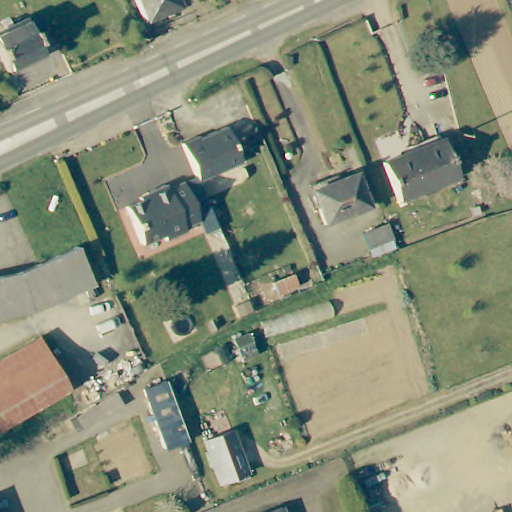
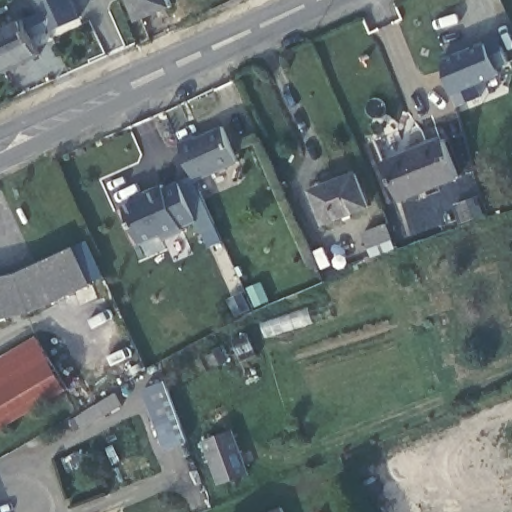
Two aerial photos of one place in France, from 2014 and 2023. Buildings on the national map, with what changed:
unchanged [(173,6),(139,20),(130,0),(171,0),(173,6)]
unchanged [(8,76),(0,60),(0,36),(28,24),(45,60),(8,76)]
new [(510,64),(497,69),(499,77),(477,86),(481,96),(458,107),(453,97),(443,60),(488,42),(499,36),(510,64)]
unchanged [(192,135),(193,138),(220,126),(236,161),(194,180),(176,143),(192,135)]
unchanged [(399,203),(381,164),(443,136),(460,175),(399,203)]
unchanged [(327,223),(318,204),(325,201),(321,187),(356,173),(369,204),(327,223)]
unchanged [(195,219),(180,226),(182,232),(163,242),(160,234),(139,244),(123,204),(145,195),(143,191),(160,183),(163,187),(177,180),(195,219)]
unchanged [(15,276),(24,275),(86,251),(101,291),(31,316),(23,318),(15,276)]
unchanged [(23,318),(0,322),(0,279),(15,276),(23,318)]
unchanged [(0,387),(0,361),(24,347),(39,338),(69,390),(36,410),(19,420),(0,387)]
unchanged [(161,398),(172,430),(153,437),(136,389),(156,382),(161,398)]
unchanged [(0,431),(0,387),(19,420),(0,431)]
unchanged [(214,496),(198,454),(225,443),(241,485),(214,496)]
unchanged [(285,512),(265,512),(283,506),(285,512)]

